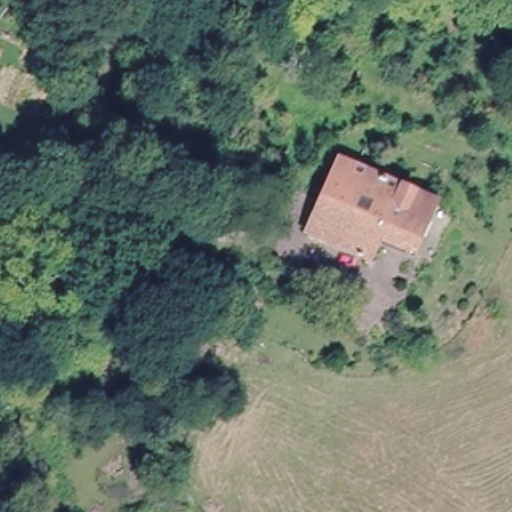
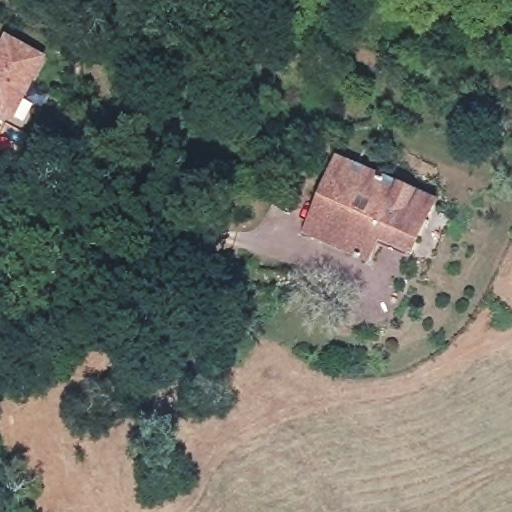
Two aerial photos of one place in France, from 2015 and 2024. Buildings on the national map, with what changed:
new [(14,123),(0,116),(0,49),(7,37),(48,57),(14,123)]
unchanged [(321,195),(338,156),(435,198),(413,251),(377,236),(368,257),(306,230),(321,195)]

